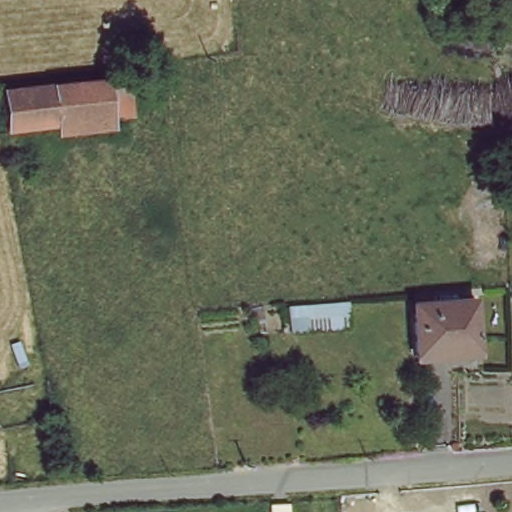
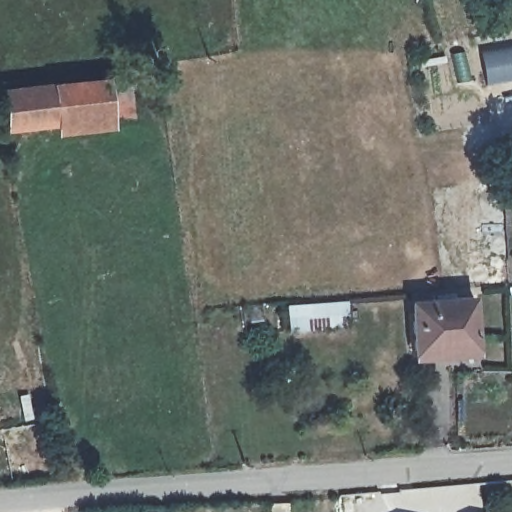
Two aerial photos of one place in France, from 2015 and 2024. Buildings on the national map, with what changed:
new [(512,43),(512,79),(485,84),(478,50),(512,43)]
unchanged [(5,90),(106,80),(129,78),(133,114),(110,116),(8,130),(5,90)]
unchanged [(416,352),(412,303),(472,297),(476,347),(416,352)]
unchanged [(349,328),(286,334),(285,305),(347,298),(349,328)]

